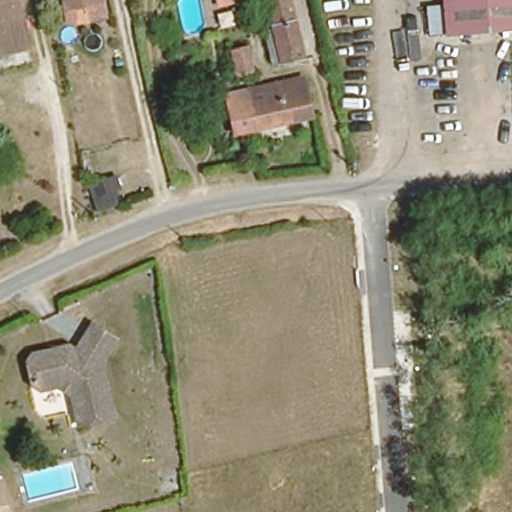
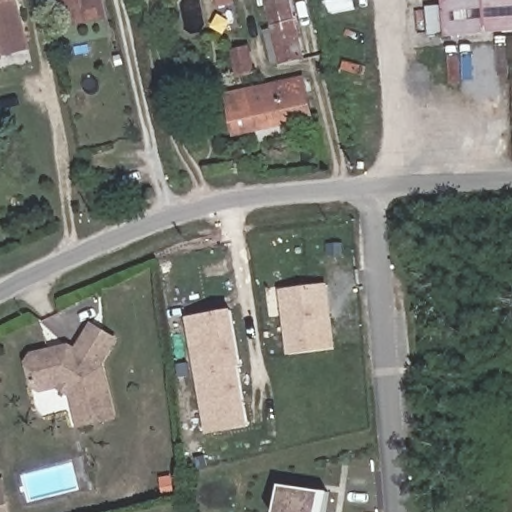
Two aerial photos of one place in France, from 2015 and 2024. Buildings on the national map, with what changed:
unchanged [(24,45),(0,51),(0,0),(13,0),(24,45)]
unchanged [(58,0),(104,0),(104,3),(59,8),(58,0)]
unchanged [(448,20),(448,10),(447,5),(447,0),(512,0),(512,30),(492,32),(489,32),(480,33),(450,35),(448,20)]
unchanged [(292,10),(300,45),(277,51),(268,16),(292,10)]
unchanged [(303,70),(312,112),(258,126),(254,114),(228,122),(222,87),(303,70)]
new [(117,177),(121,189),(113,191),(117,206),(102,210),(94,184),(117,177)]
new [(280,290),(327,284),(336,349),(288,355),(280,290)]
new [(186,318),(229,310),(249,427),(206,435),(186,318)]
unchanged [(111,341),(96,368),(102,375),(113,420),(79,429),(70,391),(72,383),(61,379),(56,389),(40,393),(31,388),(26,369),(32,359),(64,350),(70,353),(85,325),(111,341)]
new [(9,512),(0,512),(0,481),(3,480),(9,512)]
new [(276,512),(279,484),(328,492),(324,512),(276,512)]

